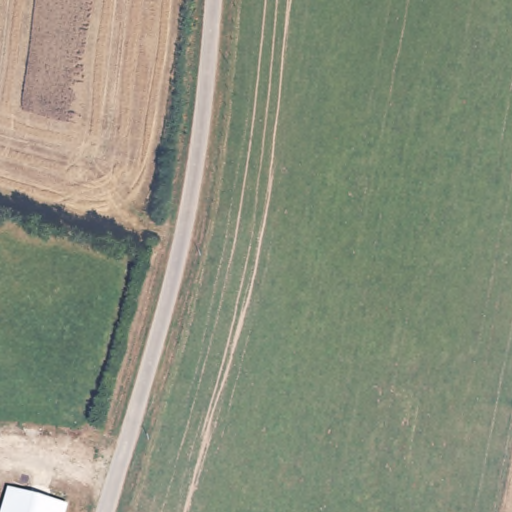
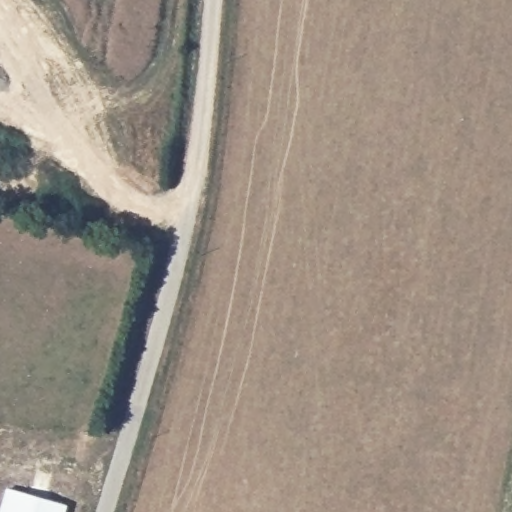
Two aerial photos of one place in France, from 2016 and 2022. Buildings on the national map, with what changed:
unchanged [(9,496),(67,511),(67,512),(5,512),(9,496)]

